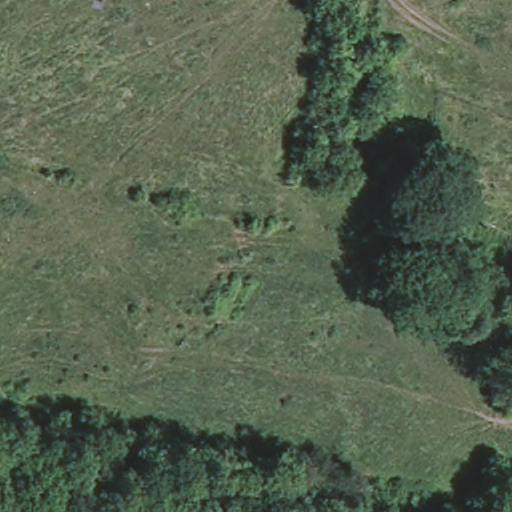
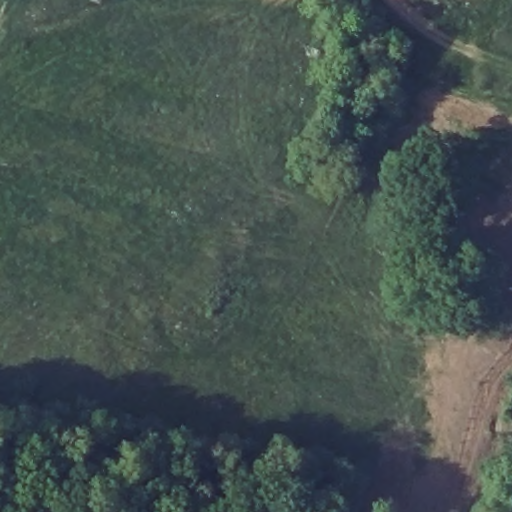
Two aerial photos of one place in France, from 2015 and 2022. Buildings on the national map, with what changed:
[]

